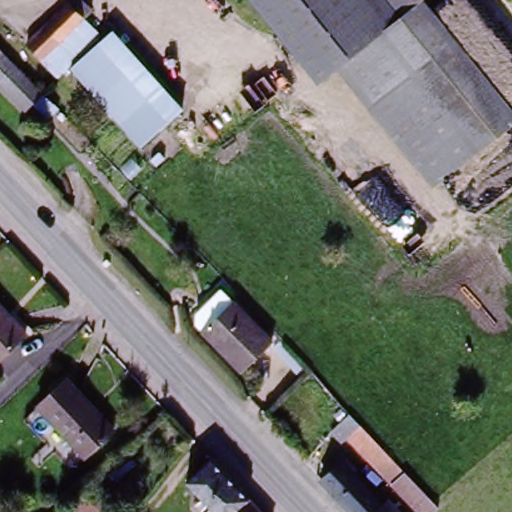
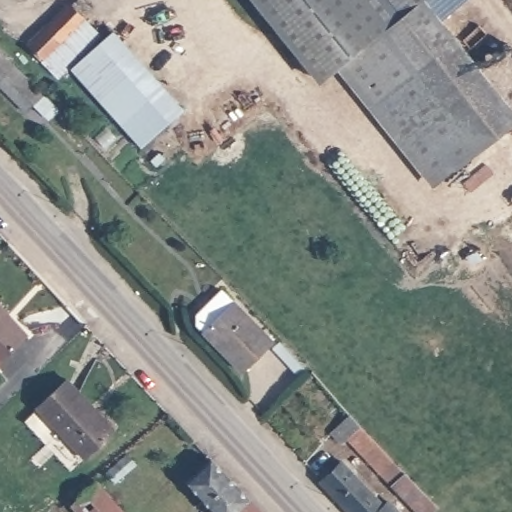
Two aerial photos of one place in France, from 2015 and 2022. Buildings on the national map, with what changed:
unchanged [(60,7),(64,10),(77,0),(81,0),(90,10),(82,17),(42,54),(26,39),(60,7)]
unchanged [(251,0),(291,0),(320,40),(337,64),(310,81),(251,0)]
unchanged [(412,0),(417,6),(337,64),(320,40),(291,0),(412,0)]
unchanged [(426,0),(417,6),(412,0),(426,0)]
unchanged [(506,125),(426,184),(337,64),(417,6),(506,125)]
unchanged [(82,17),(97,32),(59,70),(42,54),(82,17)]
unchanged [(113,32),(183,110),(142,149),(70,72),(113,32)]
unchanged [(60,106),(50,115),(44,110),(35,100),(29,106),(0,77),(0,44),(60,106)]
unchanged [(205,327),(193,315),(224,289),(234,301),(273,345),(243,371),(205,327)]
unchanged [(25,330),(0,355),(0,305),(25,330)]
unchanged [(111,428),(83,455),(37,405),(64,378),(111,428)]
unchanged [(396,480),(350,432),(342,437),(333,427),(348,413),(358,424),(428,498),(437,508),(432,512),(416,512),(390,485),(396,480)]
unchanged [(130,457),(138,465),(120,480),(113,470),(130,457)]
unchanged [(212,457),(262,512),(216,512),(187,479),(212,457)]
unchanged [(391,512),(351,512),(317,475),(335,458),(381,508),(385,505),(391,512)]
unchanged [(73,502),(98,481),(125,512),(81,512),(73,502)]

